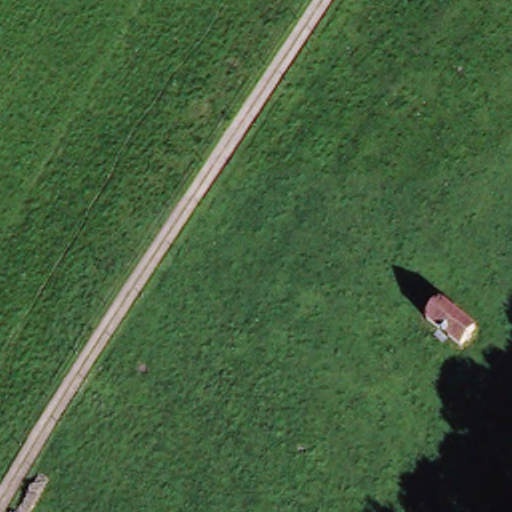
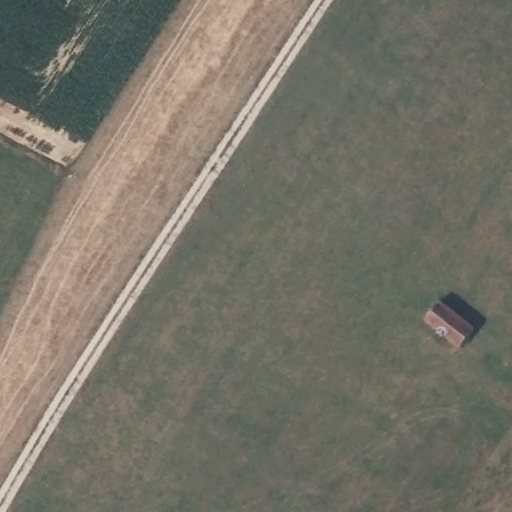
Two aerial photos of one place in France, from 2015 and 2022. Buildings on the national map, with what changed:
unchanged [(473,325),(458,344),(423,317),(439,299),(473,325)]

